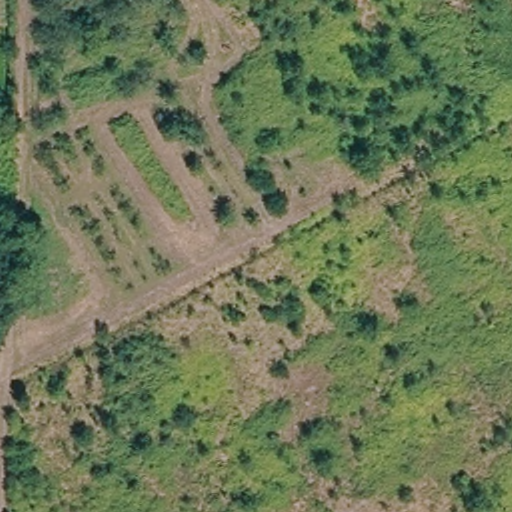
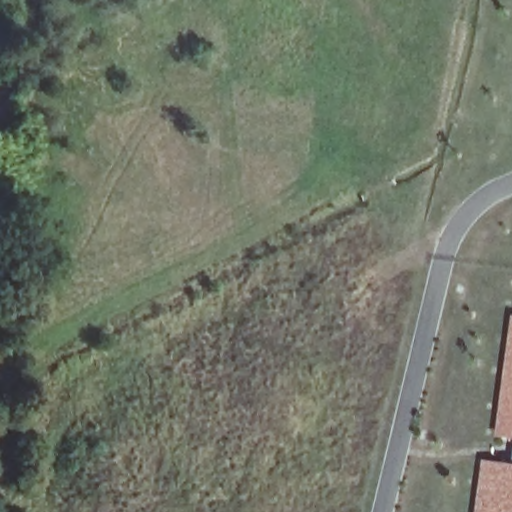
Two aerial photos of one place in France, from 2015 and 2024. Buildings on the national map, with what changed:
new [(497,437),(512,323),(512,437),(497,437)]
new [(476,512),(483,461),(512,464),(512,512),(476,512)]

